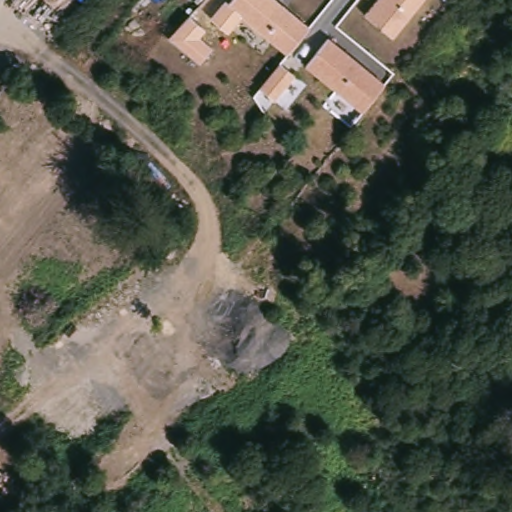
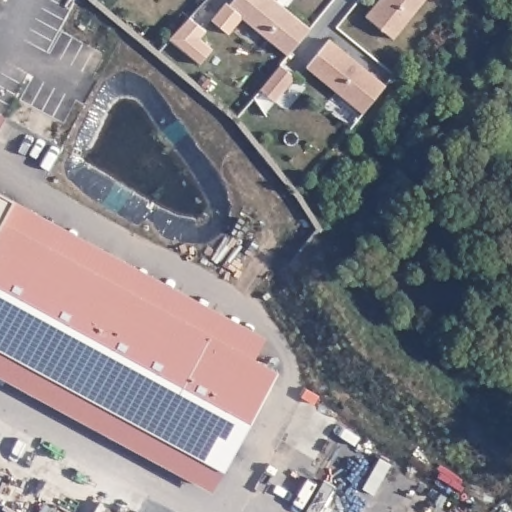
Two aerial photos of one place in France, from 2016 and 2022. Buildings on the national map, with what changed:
unchanged [(228,6),(233,0),(277,0),(312,28),(288,55),(228,6)]
unchanged [(364,15),(377,0),(426,0),(395,39),(364,15)]
new [(192,8),(209,21),(202,29),(215,41),(201,56),(171,30),(192,8)]
unchanged [(385,87),(362,116),(304,69),(327,43),(385,87)]
new [(277,58),(291,70),(270,94),(255,81),(277,58)]
new [(16,202),(4,224),(277,372),(224,471),(0,349),(0,193),(16,202)]

